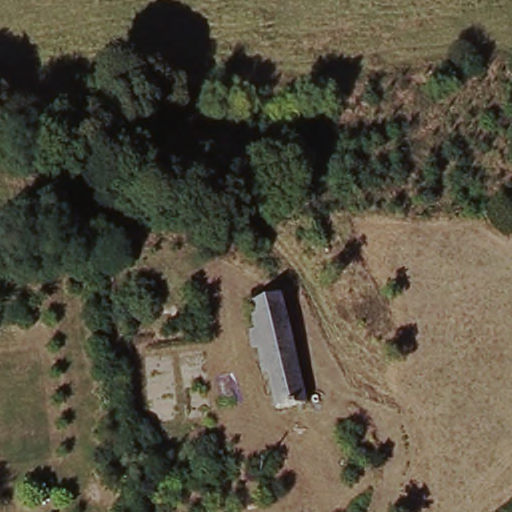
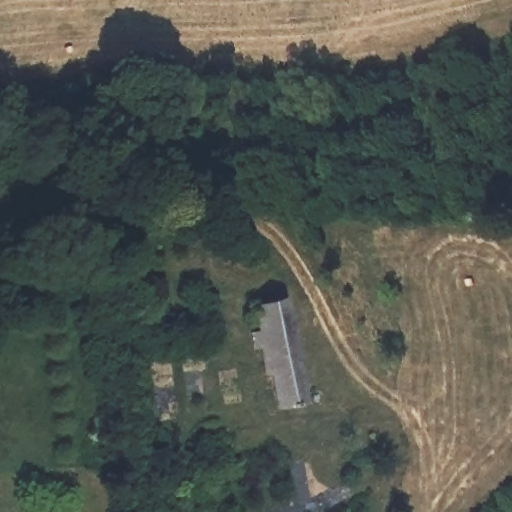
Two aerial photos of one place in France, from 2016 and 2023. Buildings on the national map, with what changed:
unchanged [(313,410),(280,420),(251,308),(282,298),(313,410)]

